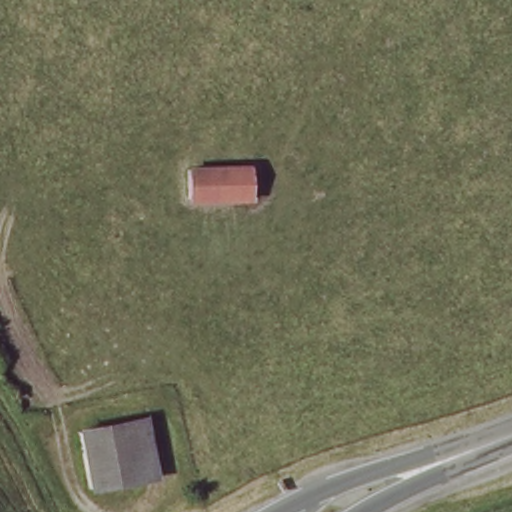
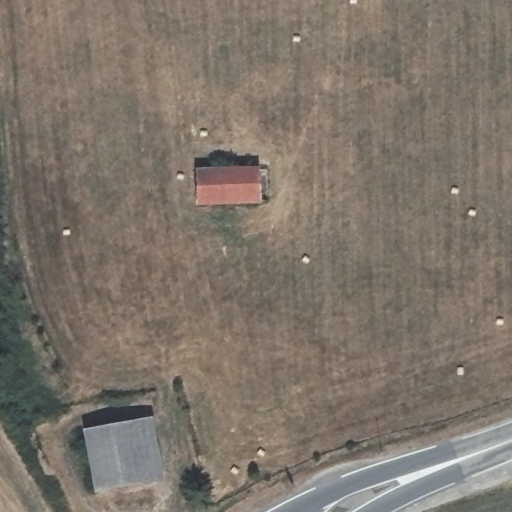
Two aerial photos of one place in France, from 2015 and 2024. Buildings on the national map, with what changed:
unchanged [(193,200),(194,175),(257,172),(257,199),(193,200)]
unchanged [(93,434),(143,420),(158,472),(109,486),(93,434)]

